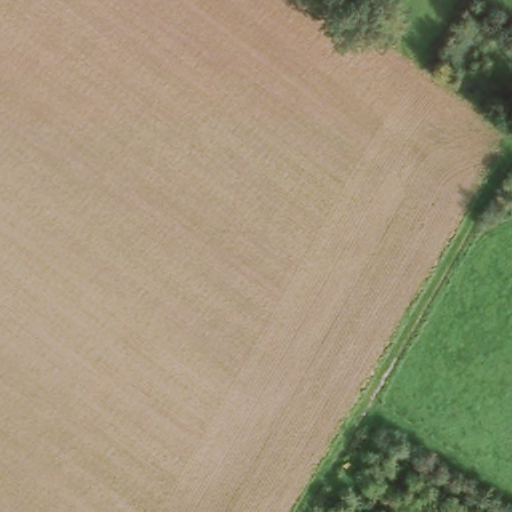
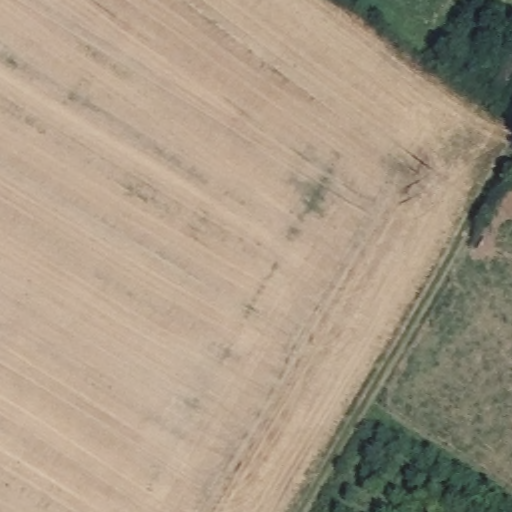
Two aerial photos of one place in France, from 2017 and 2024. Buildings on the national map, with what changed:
[]

